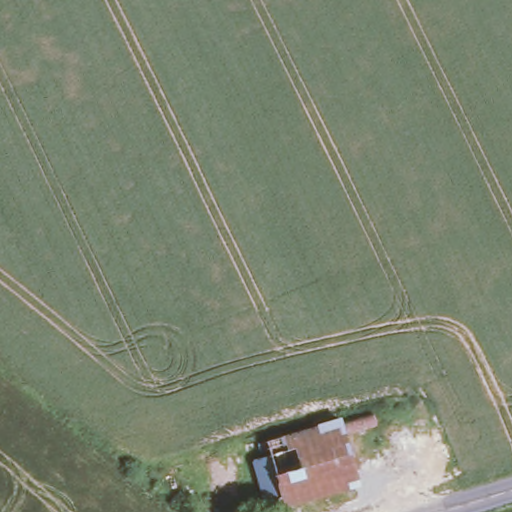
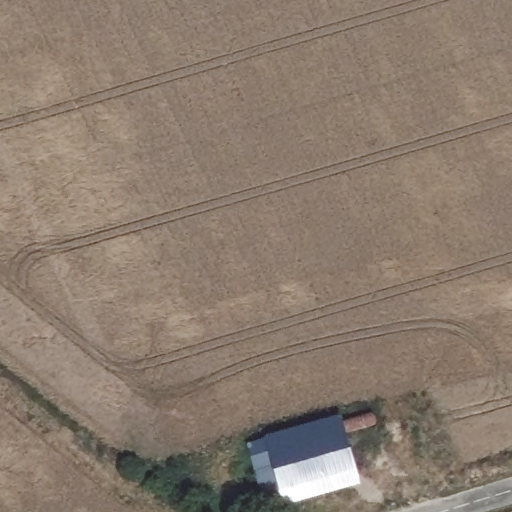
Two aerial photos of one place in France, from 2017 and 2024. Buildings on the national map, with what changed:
unchanged [(368,480),(283,505),(282,492),(258,497),(243,440),(343,410),(368,480)]

